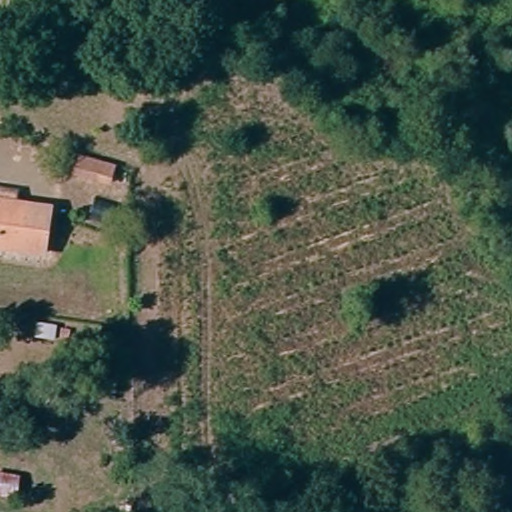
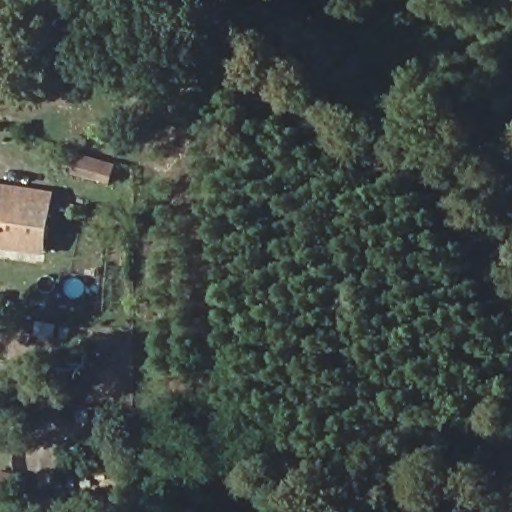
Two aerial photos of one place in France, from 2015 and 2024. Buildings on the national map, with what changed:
unchanged [(39,257),(0,254),(0,196),(20,197),(19,215),(44,218),(39,257)]

